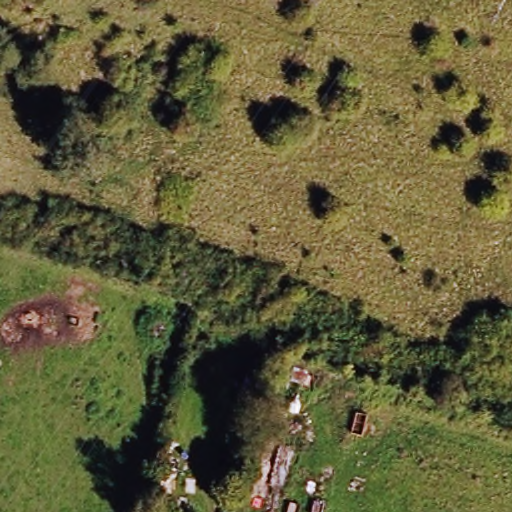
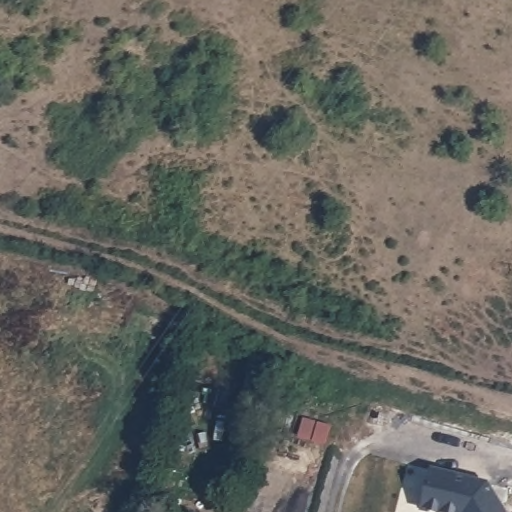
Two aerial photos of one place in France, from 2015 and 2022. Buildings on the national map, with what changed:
new [(488,480),(508,512),(425,512),(421,511),(432,467),(488,480)]

